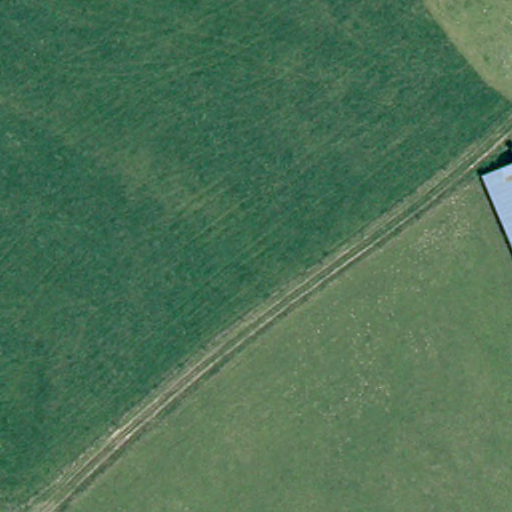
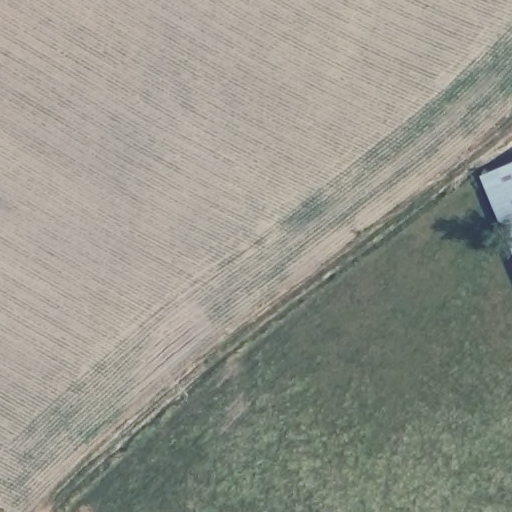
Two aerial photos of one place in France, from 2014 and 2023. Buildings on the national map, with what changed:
unchanged [(494,170),(512,163),(512,219),(494,170)]

